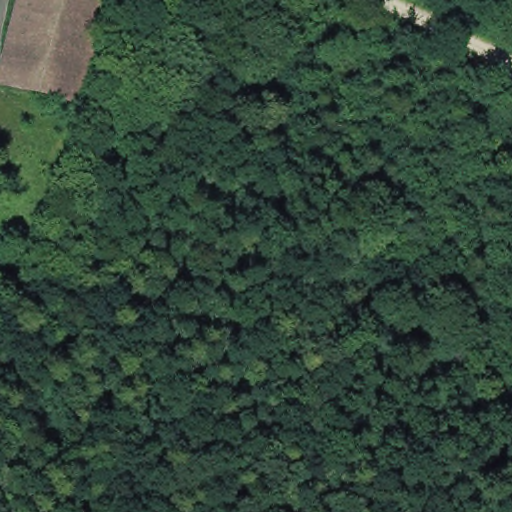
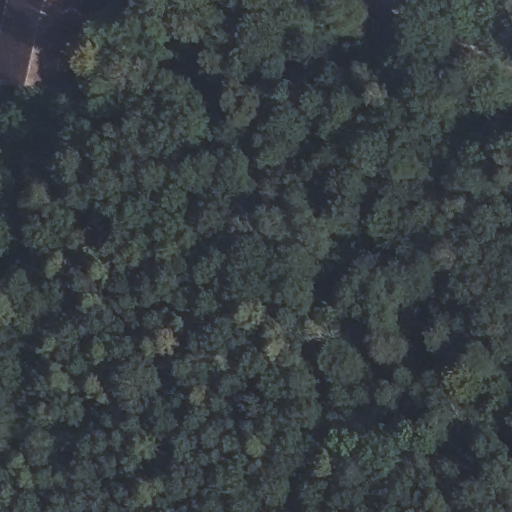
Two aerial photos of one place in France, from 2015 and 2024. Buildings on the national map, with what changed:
unchanged [(76,105),(3,88),(24,0),(101,0),(76,105)]

